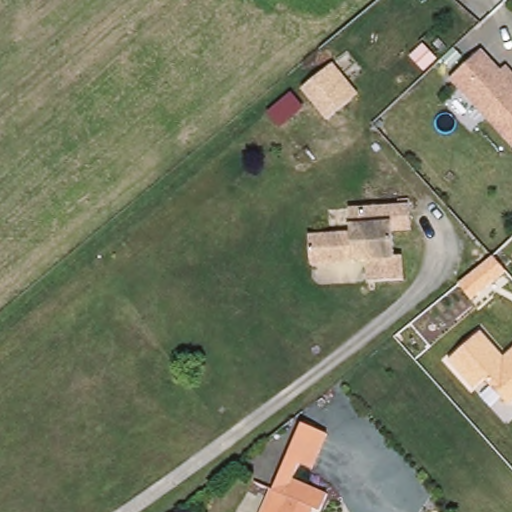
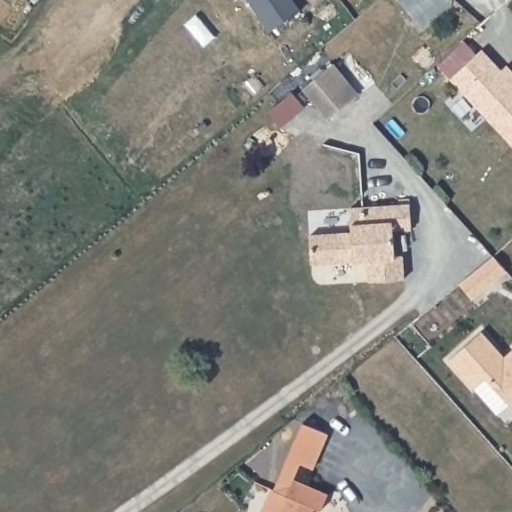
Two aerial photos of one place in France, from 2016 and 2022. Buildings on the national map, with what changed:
new [(247,0),(294,0),(301,11),(270,32),(247,0)]
unchanged [(481,52),(502,74),(508,70),(512,75),(512,147),(509,150),(449,84),(481,52)]
unchanged [(320,77),(331,67),(358,97),(347,106),(328,123),(302,93),(320,77)]
unchanged [(349,230),(347,210),(362,209),(396,207),(396,202),(407,202),(407,206),(409,232),(389,234),(391,260),(399,260),(400,284),(365,286),(364,266),(309,268),(308,241),(349,239),(349,230)]
unchanged [(459,284),(493,257),(504,272),(472,299),(459,284)]
unchanged [(481,332),(503,357),(512,349),(512,403),(509,405),(485,378),(474,389),(448,361),(481,332)]
unchanged [(330,432),(318,464),(303,462),(296,481),(290,478),(283,497),(287,500),(281,512),(262,512),(302,422),(330,432)]
unchanged [(290,478),(296,481),(326,495),(319,511),(313,508),(311,512),(281,512),(287,500),(283,497),(290,478)]

